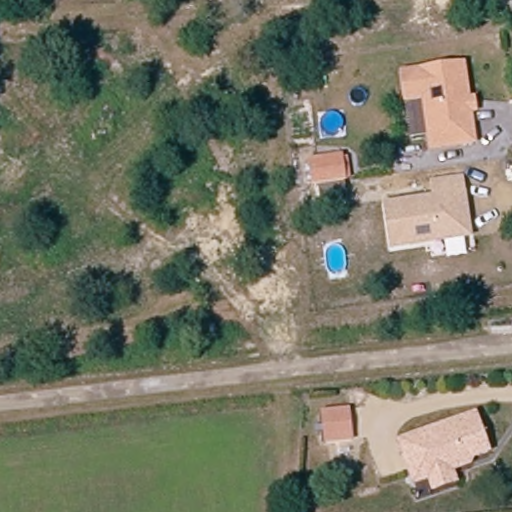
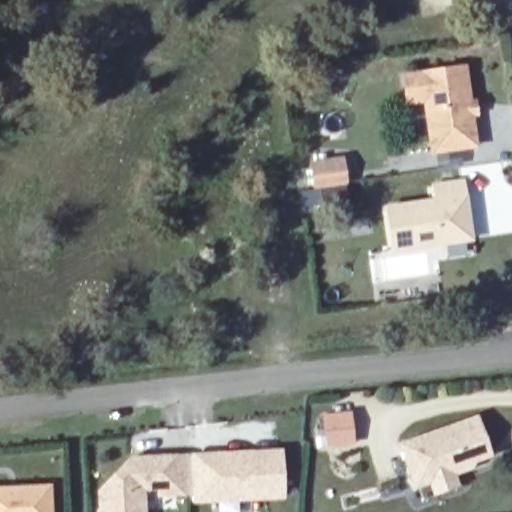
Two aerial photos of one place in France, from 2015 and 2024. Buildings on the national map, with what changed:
unchanged [(428,149),(422,97),(405,99),(401,74),(461,66),(465,101),(470,101),(472,111),(467,112),(471,143),(428,149)]
unchanged [(343,157),(347,184),(312,187),(308,160),(343,157)]
unchanged [(470,237),(394,248),(388,206),(436,199),(434,184),(462,180),(470,237)]
unchanged [(352,410),(356,441),(331,443),(327,413),(352,410)]
unchanged [(472,414),(485,447),(470,453),(472,456),(455,462),(457,467),(450,470),(453,481),(433,488),(427,471),(412,477),(398,441),(472,414)]
new [(285,499),(192,505),(192,496),(156,498),(156,490),(144,490),(145,512),(97,512),(96,490),(130,456),(282,448),(285,499)]
new [(52,512),(0,512),(0,487),(51,485),(52,512)]

